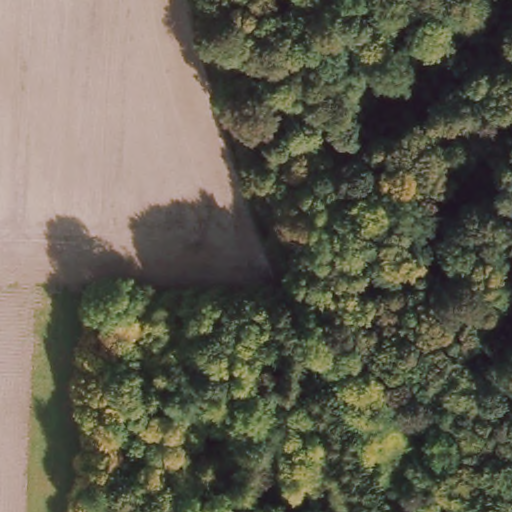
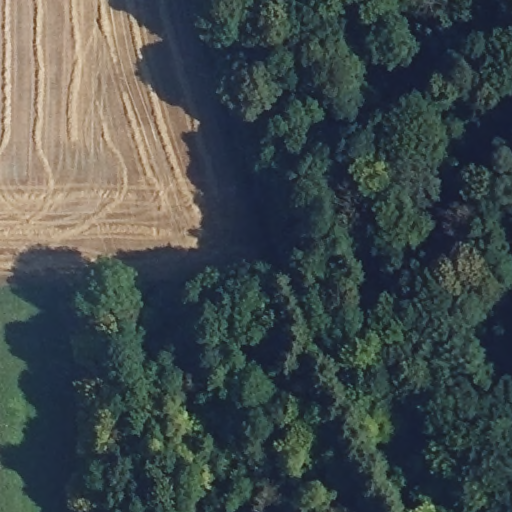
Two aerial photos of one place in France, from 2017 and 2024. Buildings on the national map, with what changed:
unchanged [(334,495),(321,500),(311,477),(324,472),(334,495)]

